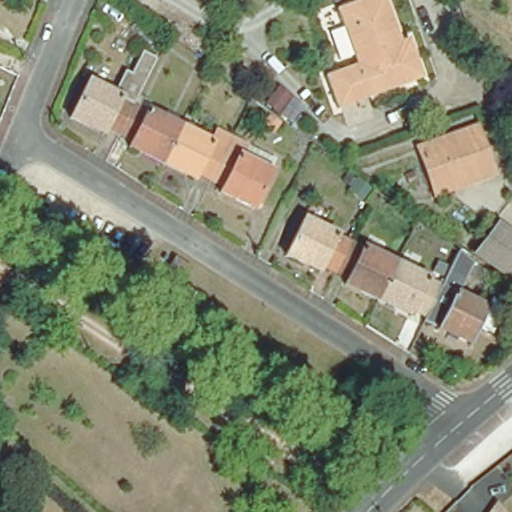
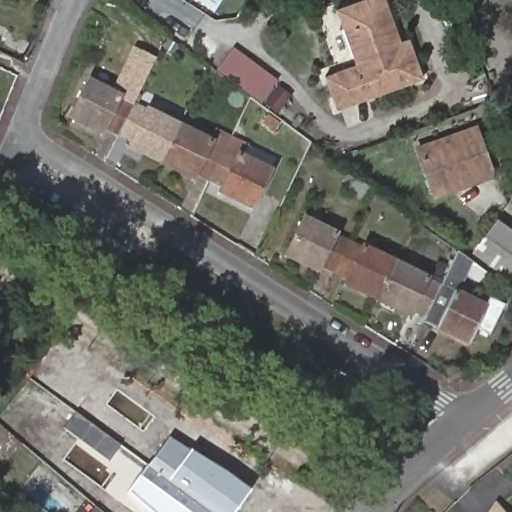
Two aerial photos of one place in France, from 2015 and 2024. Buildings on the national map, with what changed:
unchanged [(434,80),(348,110),(336,77),(366,66),(347,10),(375,0),(398,0),(412,41),(420,39),(434,80)]
new [(277,81),(260,104),(215,71),(233,48),(277,81)]
unchanged [(133,107),(117,141),(106,136),(102,143),(67,125),(87,85),(112,97),(122,77),(129,80),(141,56),(155,63),(133,107)]
unchanged [(512,69),(512,87),(503,81),(512,69)]
new [(264,104),(278,86),(285,91),(292,96),(277,115),(270,109),(264,104)]
unchanged [(158,170),(126,154),(129,147),(117,141),(133,107),(179,129),(158,170)]
unchanged [(211,145),(217,135),(230,141),(208,186),(198,181),(194,188),(158,170),(179,129),(211,145)]
unchanged [(463,192),(444,199),(428,156),(484,136),(497,172),(499,178),(463,192)]
unchanged [(274,163),(270,174),(273,176),(253,216),(217,199),(221,192),(208,186),(230,141),(274,163)]
unchanged [(337,274),(327,270),(325,274),(288,256),(306,218),(354,241),(337,274)]
unchanged [(512,279),(481,256),(502,228),(512,235),(512,279)]
unchanged [(399,262),(380,301),(348,285),(350,280),(337,274),(354,241),(399,262)]
unchanged [(463,293),(490,306),(493,301),(507,307),(494,336),(481,329),(473,345),(427,323),(430,319),(446,285),(462,252),(470,258),(478,264),(463,293)]
unchanged [(169,258),(186,269),(175,286),(158,276),(169,258)]
unchanged [(446,285),(430,319),(419,313),(416,318),(380,301),(399,262),(446,285)]
new [(76,413),(120,445),(108,461),(64,429),(76,413)]
unchanged [(27,444),(1,472),(0,471),(0,421),(27,444)]
new [(146,467),(168,439),(189,451),(221,471),(249,492),(235,512),(148,512),(126,494),(145,466),(146,467)]
unchanged [(507,512),(496,512),(501,505),(507,512)]

